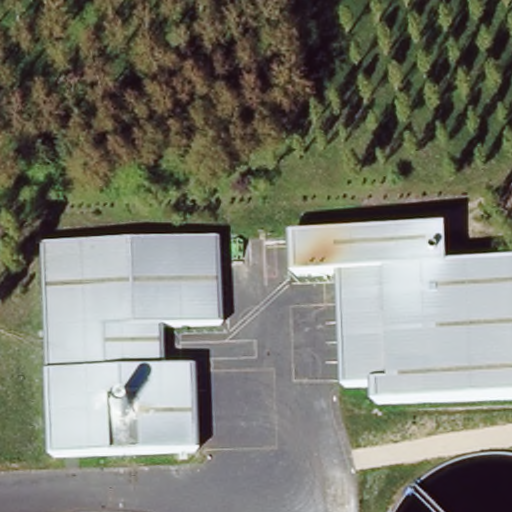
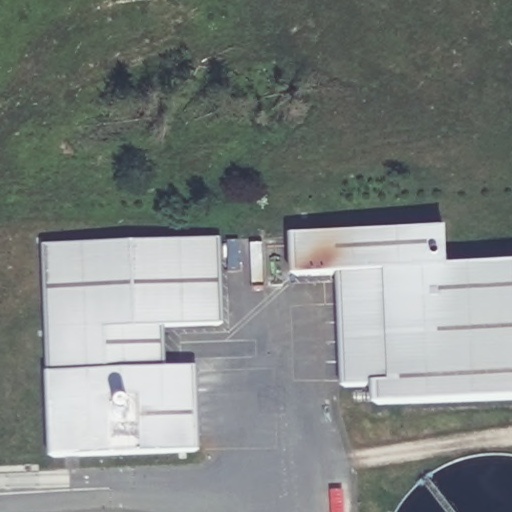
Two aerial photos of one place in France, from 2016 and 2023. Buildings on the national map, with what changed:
unchanged [(448,232),(447,267),(512,266),(512,399),(374,403),(373,382),(343,383),(338,271),(296,273),(295,237),(448,232)]
unchanged [(221,247),(223,335),(165,336),(166,378),(193,377),(196,460),(48,463),(45,251),(221,247)]

